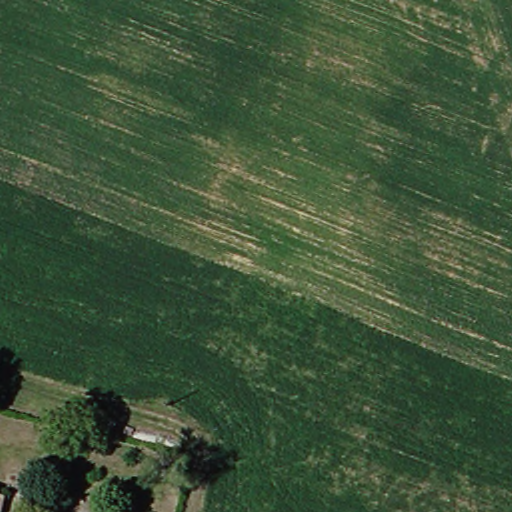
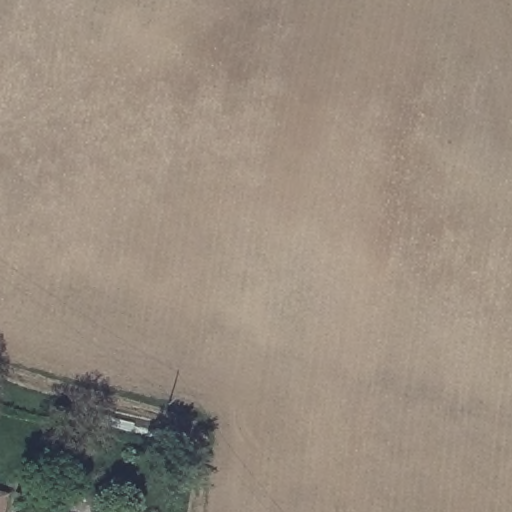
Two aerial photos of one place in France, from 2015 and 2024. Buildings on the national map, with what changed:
unchanged [(0,512),(0,495),(5,497),(2,512),(0,512)]

